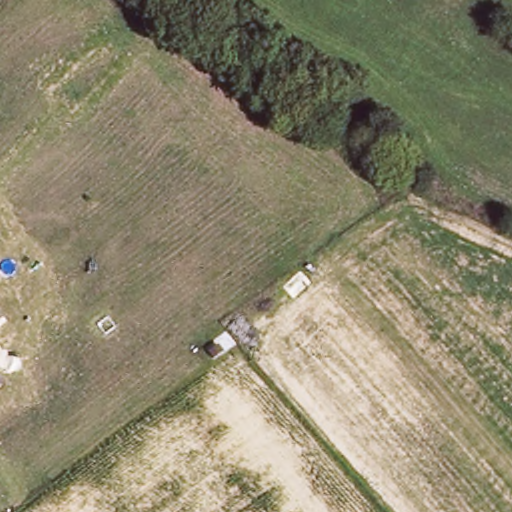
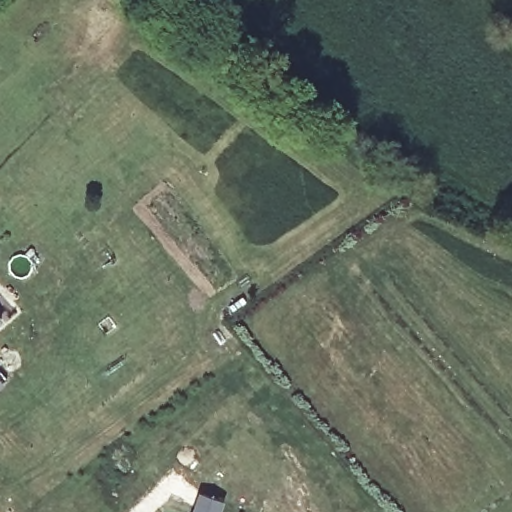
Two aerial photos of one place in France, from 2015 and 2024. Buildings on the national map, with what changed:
unchanged [(0,323),(0,314),(5,319),(0,323)]
new [(0,383),(0,381),(1,382),(0,383)]
new [(200,493),(222,501),(218,512),(193,512),(200,493)]

